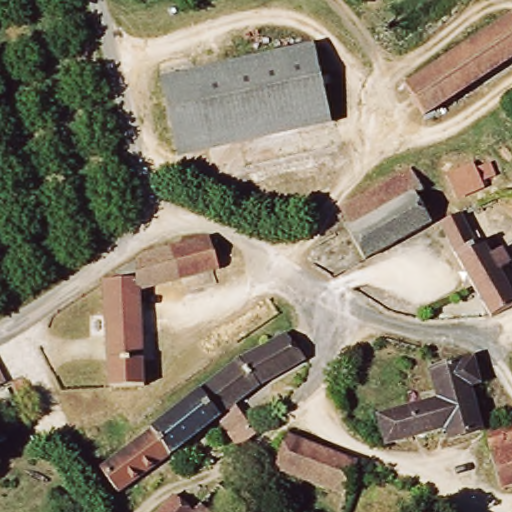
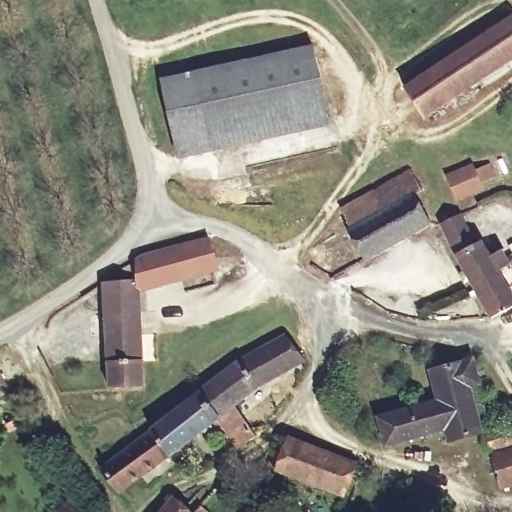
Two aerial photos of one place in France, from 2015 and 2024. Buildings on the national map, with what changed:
unchanged [(512,19),(512,60),(426,117),(407,89),(512,19)]
unchanged [(332,120),(177,154),(161,84),(316,50),(332,120)]
unchanged [(493,163),(498,176),(484,180),(489,190),(461,200),(450,177),(476,165),(478,168),(493,163)]
unchanged [(367,263),(350,232),(356,229),(345,208),(412,173),(422,192),(417,195),(433,226),(367,263)]
unchanged [(487,207),(499,202),(506,220),(475,236),(480,248),(488,245),(512,290),(512,309),(492,320),(441,226),(484,203),(487,207)]
unchanged [(136,263),(211,237),(222,270),(141,298),(148,386),(110,389),(104,284),(136,263)]
unchanged [(258,433),(240,445),(220,414),(172,454),(154,430),(204,392),(234,368),(288,333),(307,358),(237,404),(254,428),(258,433)]
unchanged [(450,426),(390,443),(383,417),(442,398),(434,371),(470,363),(489,430),(454,441),(450,426)]
unchanged [(18,378),(0,387),(0,364),(18,378)]
unchanged [(102,469),(154,430),(172,454),(120,492),(102,469)]
unchanged [(347,494),(278,465),(292,433),(361,463),(347,494)]
unchanged [(487,439),(512,433),(512,443),(490,450),(487,439)]
unchanged [(501,489),(492,457),(512,451),(512,485),(501,489)]
unchanged [(222,512),(199,512),(213,498),(225,510),(222,512)]
unchanged [(197,512),(164,512),(176,499),(197,512)]

